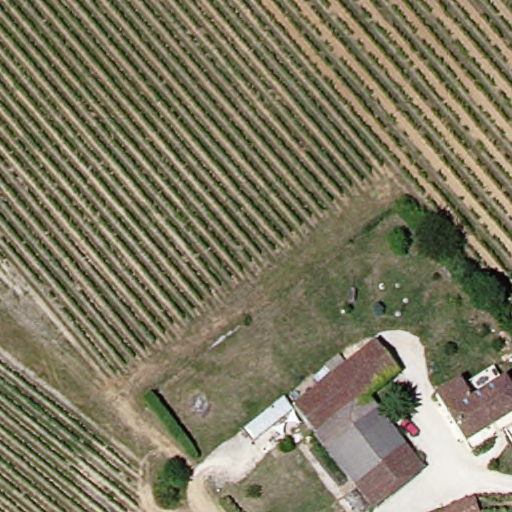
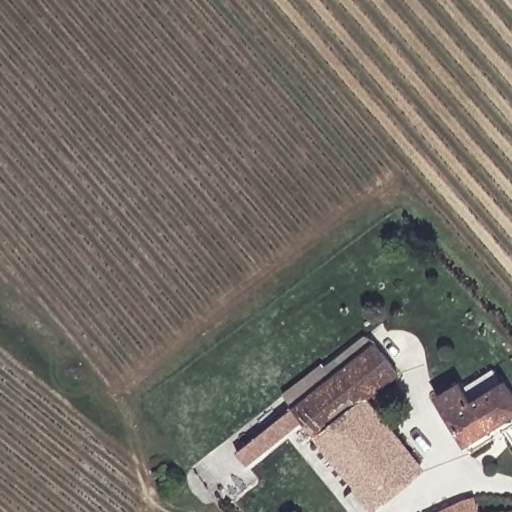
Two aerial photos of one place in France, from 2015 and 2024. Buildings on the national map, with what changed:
unchanged [(367,395),(314,436),(291,406),(375,342),(397,372),(386,380),(367,395)]
unchanged [(462,378),(475,400),(510,377),(512,381),(512,414),(467,442),(451,416),(437,394),(462,378)]
unchanged [(401,446),(352,485),(314,436),(367,395),(401,446)]
new [(291,406),(303,422),(249,464),(238,451),(291,406)]
unchanged [(352,485),(401,446),(422,473),(371,510),(352,485)]
unchanged [(479,512),(471,512),(478,510),(479,512)]

